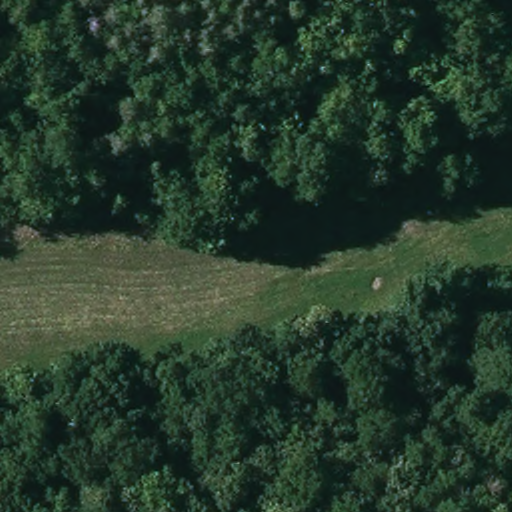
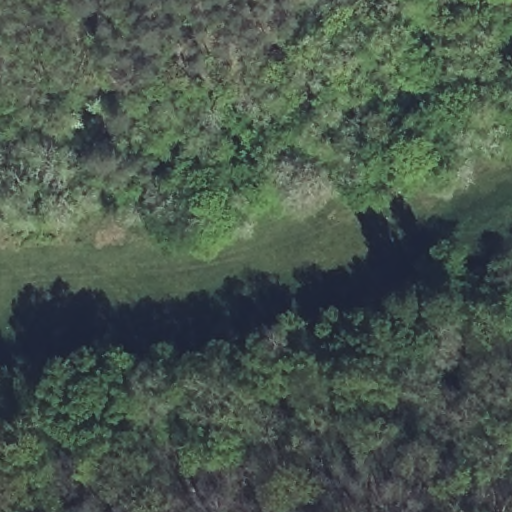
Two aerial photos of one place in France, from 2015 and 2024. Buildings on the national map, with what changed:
unchanged [(371,161),(387,157),(390,170),(375,174),(371,161)]
unchanged [(483,275),(467,279),(464,260),(480,257),(483,275)]
unchanged [(475,283),(489,279),(491,289),(477,293),(475,283)]

